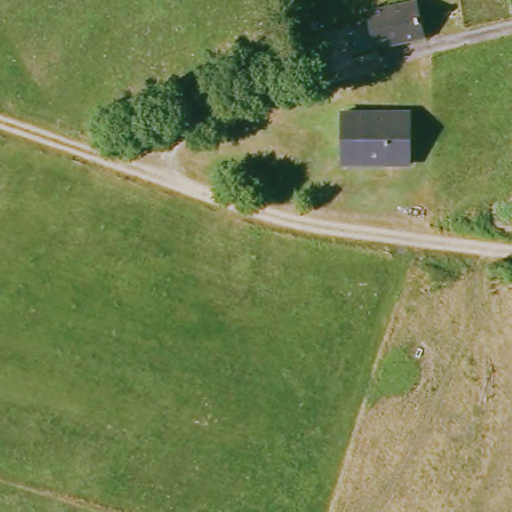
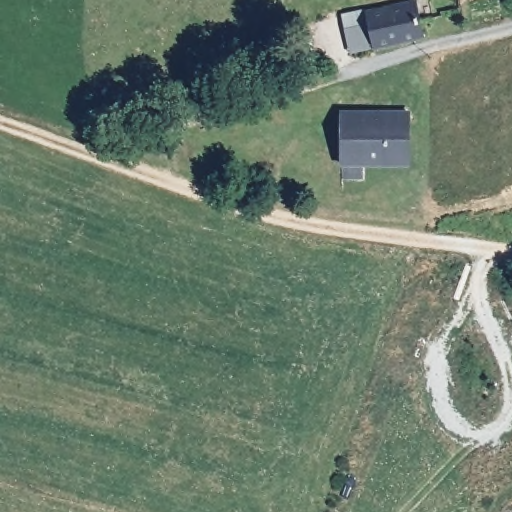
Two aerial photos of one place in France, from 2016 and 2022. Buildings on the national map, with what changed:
unchanged [(418,0),(420,0),(430,40),(350,56),(343,16),(418,0)]
unchanged [(408,169),(341,163),(346,112),(411,118),(408,169)]

